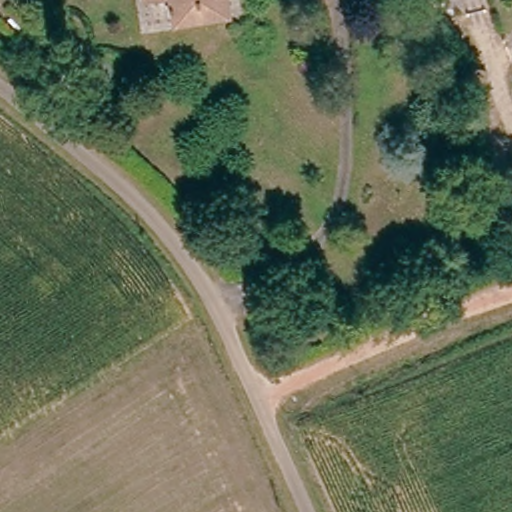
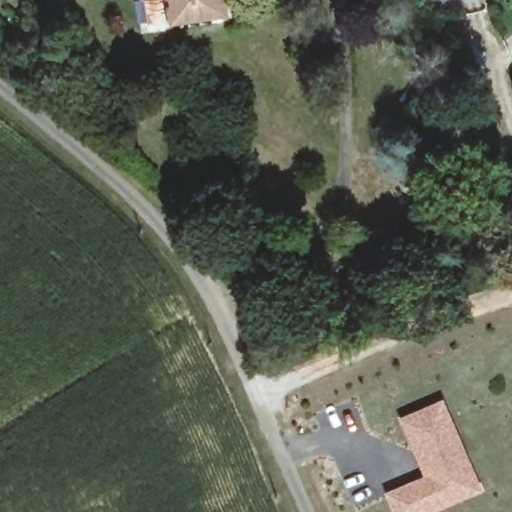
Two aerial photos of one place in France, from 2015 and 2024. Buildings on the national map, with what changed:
unchanged [(174,27),(172,1),(151,2),(146,2),(146,0),(228,0),(230,24),(174,27)]
new [(481,490),(432,512),(393,512),(383,492),(423,475),(398,418),(443,398),(481,490)]

